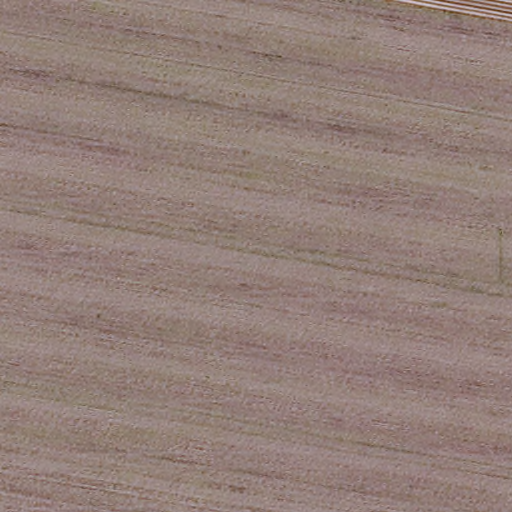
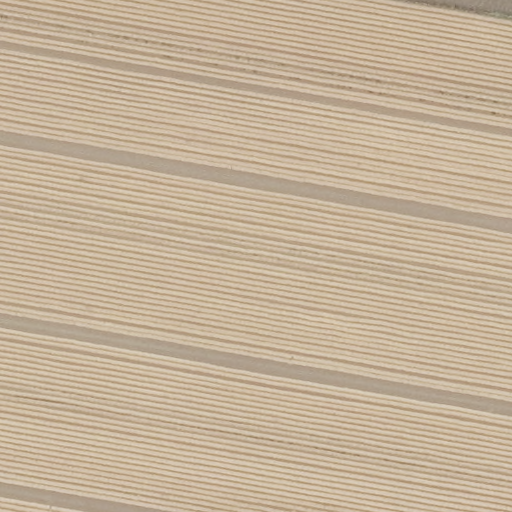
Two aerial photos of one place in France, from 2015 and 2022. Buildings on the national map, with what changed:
[]

